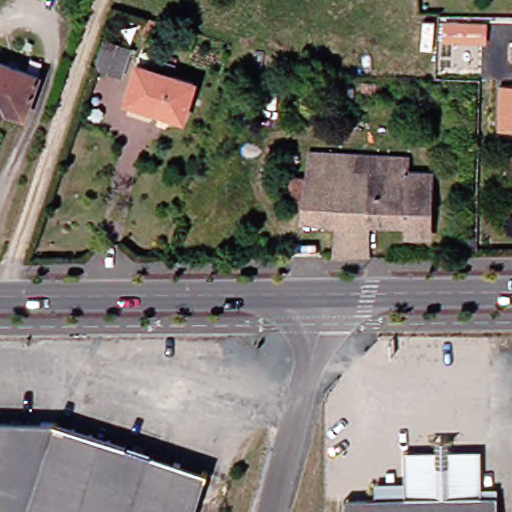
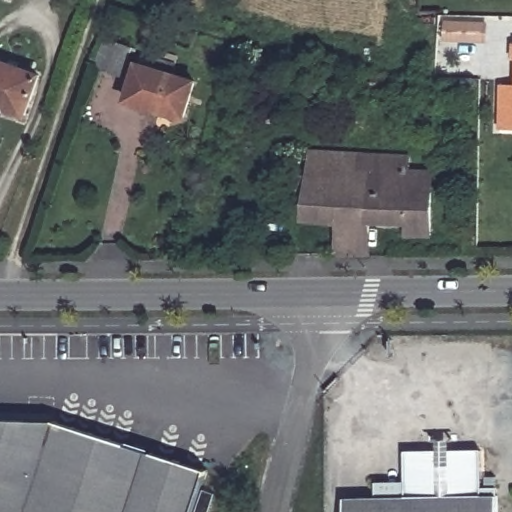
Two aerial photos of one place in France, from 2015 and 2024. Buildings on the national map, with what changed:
unchanged [(155,39),(143,35),(148,19),(160,22),(155,39)]
unchanged [(131,48),(121,75),(95,66),(105,39),(131,48)]
unchanged [(495,85),(511,85),(512,42),(512,128),(494,127),(495,85)]
unchanged [(176,74),(200,81),(189,120),(130,101),(142,63),(159,69),(162,59),(179,64),(176,74)]
unchanged [(43,75),(30,115),(9,108),(6,114),(0,111),(0,60),(43,75)]
unchanged [(421,194),(420,236),(396,235),(396,224),(358,224),(356,256),(324,257),(327,225),(293,221),(300,166),(335,167),(336,154),(348,155),(400,157),(400,171),(399,193),(421,194)]
unchanged [(60,421),(34,512),(0,512),(0,419),(60,421)]
unchanged [(200,512),(34,512),(60,421),(213,470),(200,512)]
unchanged [(488,512),(336,512),(335,498),(396,497),(395,451),(426,450),(426,440),(440,440),(440,450),(471,450),(472,495),(488,495),(488,512)]

